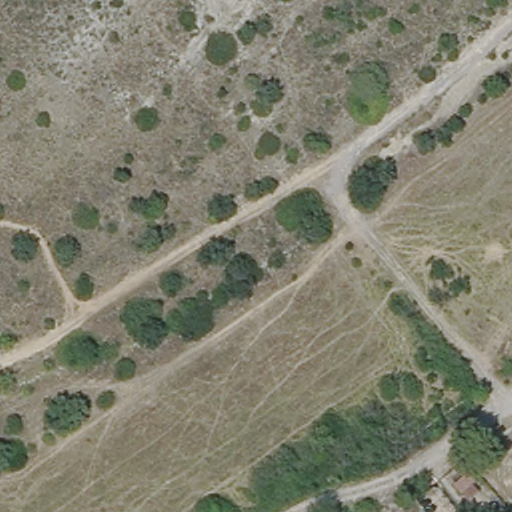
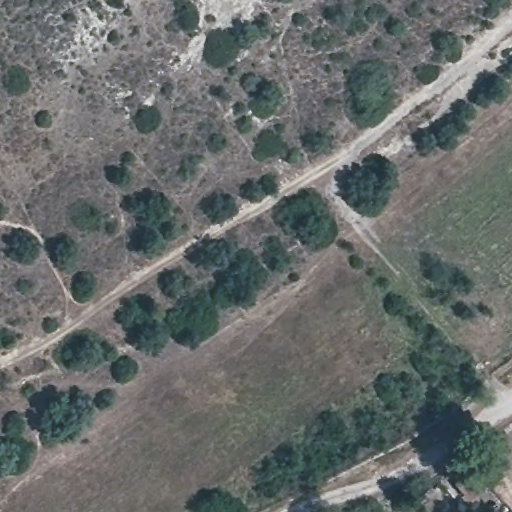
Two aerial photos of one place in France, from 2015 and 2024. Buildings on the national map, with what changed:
unchanged [(464,460),(483,490),(465,501),(446,475),(464,460)]

